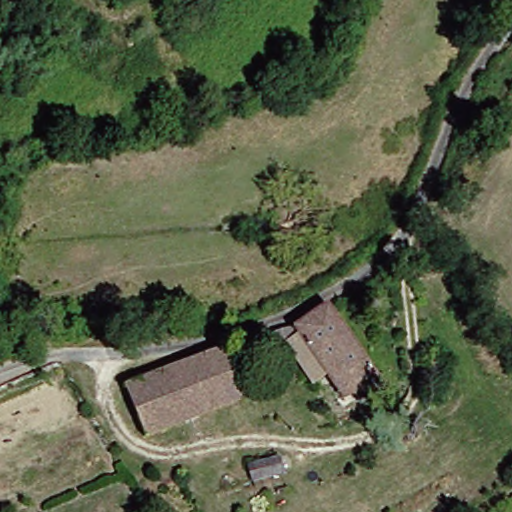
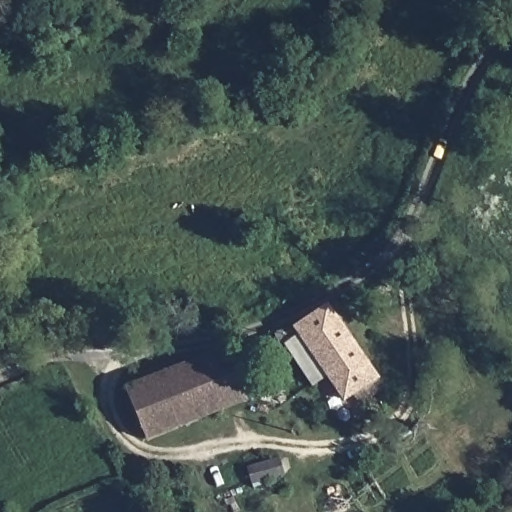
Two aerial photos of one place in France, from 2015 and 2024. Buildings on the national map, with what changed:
unchanged [(358,403),(350,393),(340,399),(323,379),(310,389),(280,350),(294,337),(288,330),(327,305),(376,376),(364,385),(373,393),(358,403)]
unchanged [(244,403),(219,413),(198,366),(220,352),(244,403)]
unchanged [(219,413),(146,443),(124,396),(198,366),(219,413)]
unchanged [(279,470),(285,488),(257,497),(249,480),(279,470)]

